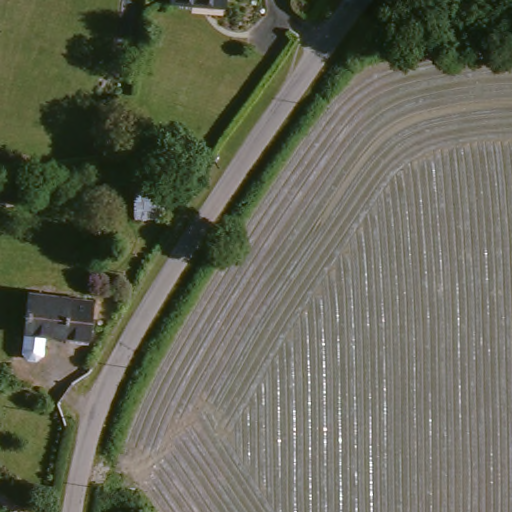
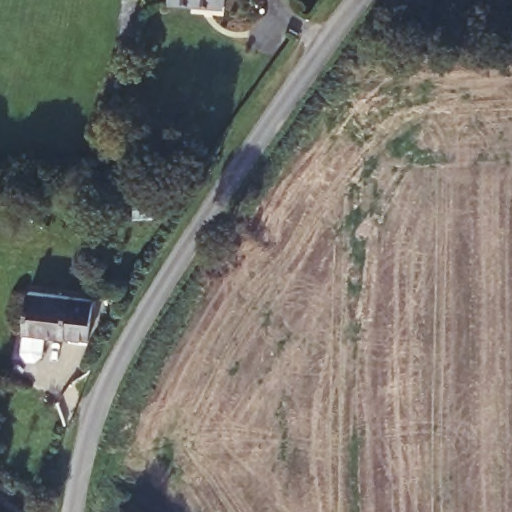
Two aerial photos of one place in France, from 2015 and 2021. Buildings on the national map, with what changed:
unchanged [(192,3),(169,1),(169,0),(192,0),(192,3)]
unchanged [(162,247),(127,248),(127,185),(162,184),(162,247)]
unchanged [(47,340),(45,359),(38,365),(30,363),(24,356),(31,295),(95,302),(90,344),(47,340)]

